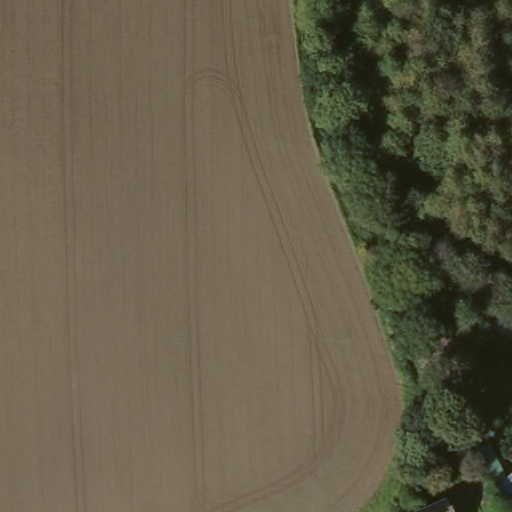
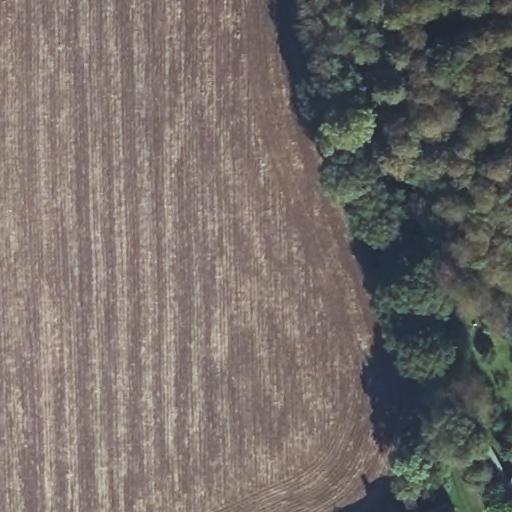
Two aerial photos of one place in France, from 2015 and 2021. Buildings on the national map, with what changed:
unchanged [(437,512),(444,509),(445,512),(437,512)]

